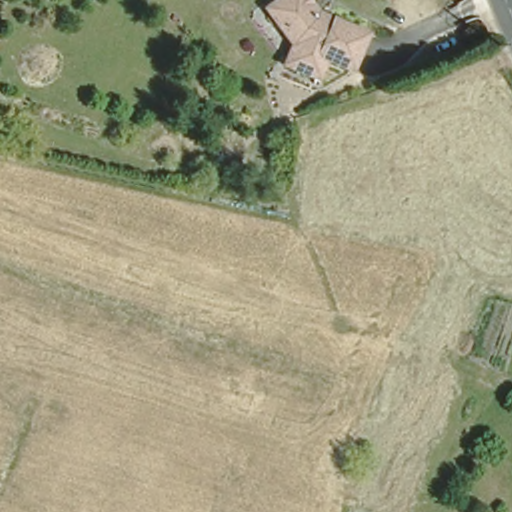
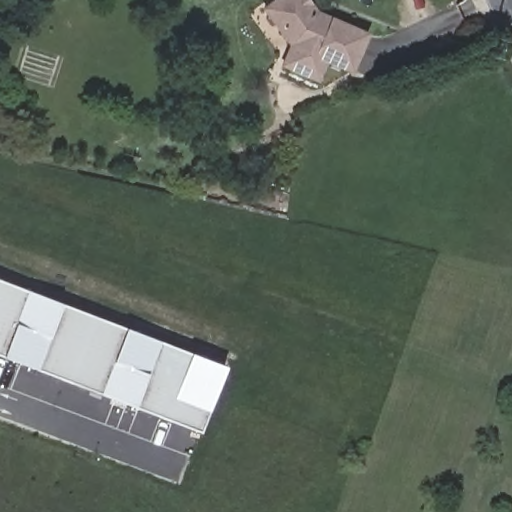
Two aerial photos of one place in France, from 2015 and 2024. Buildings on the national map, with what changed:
unchanged [(325,68),(314,87),(281,68),(292,49),(283,33),(269,9),(278,4),(286,0),(310,0),(322,21),(325,23),(336,28),(368,47),(348,81),(325,68)]
new [(0,355),(0,281),(224,369),(200,432),(0,355)]

